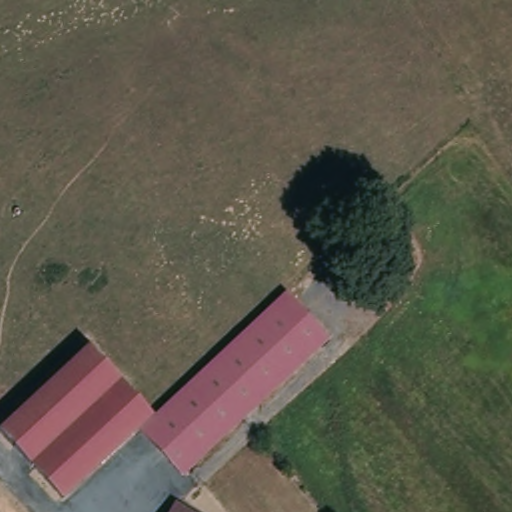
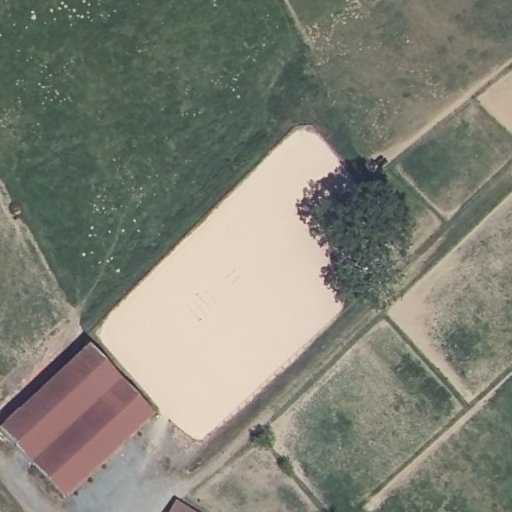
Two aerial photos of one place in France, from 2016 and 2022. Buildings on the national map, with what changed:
demolished [(301,284),(339,327),(182,470),(142,425),(301,284)]
unchanged [(84,346),(149,417),(62,497),(0,430),(0,424),(84,346)]
unchanged [(186,512),(172,512),(176,506),(186,512)]

